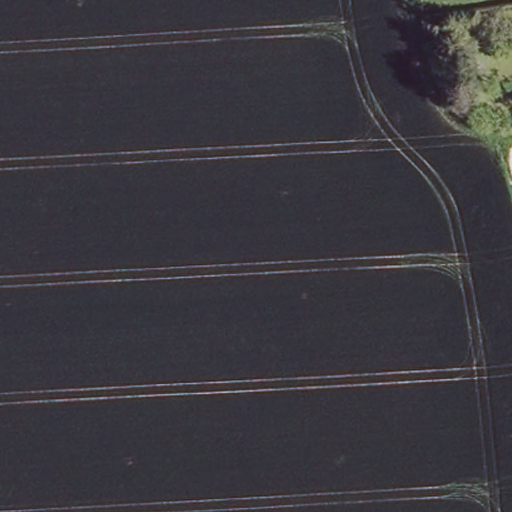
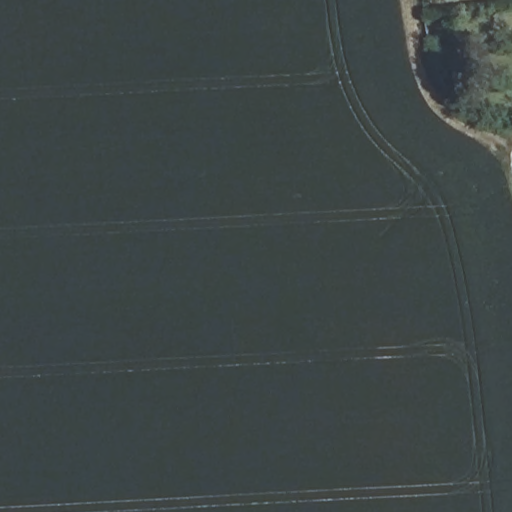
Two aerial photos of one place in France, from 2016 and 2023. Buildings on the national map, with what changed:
[]

